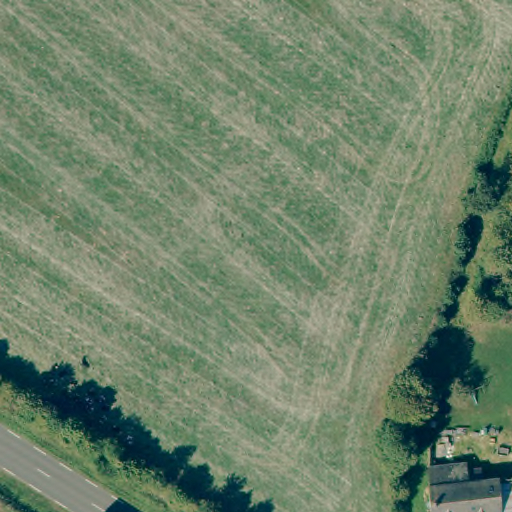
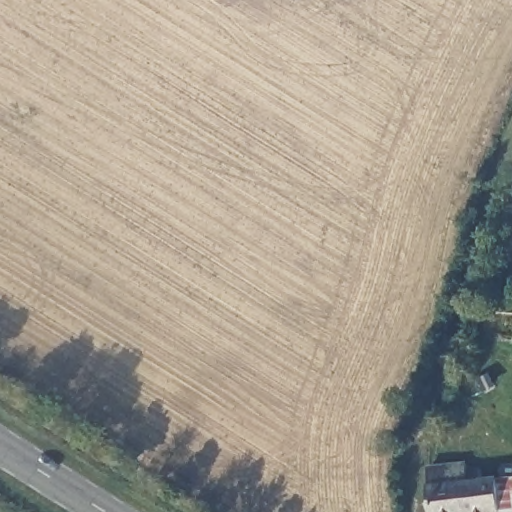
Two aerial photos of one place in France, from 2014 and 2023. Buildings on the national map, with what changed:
unchanged [(467,465),(467,471),(483,470),(485,482),(501,480),(512,480),(512,512),(434,512),(431,467),(467,465)]

